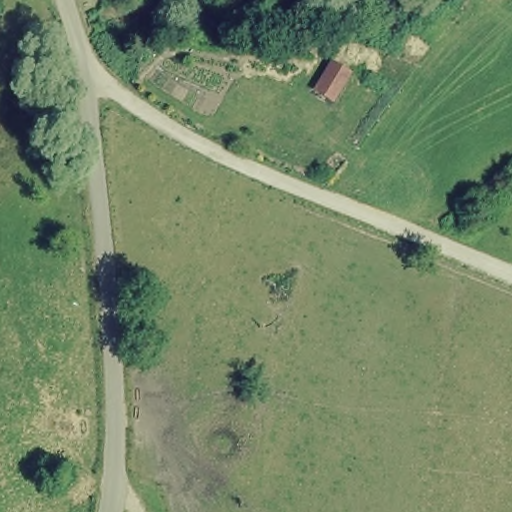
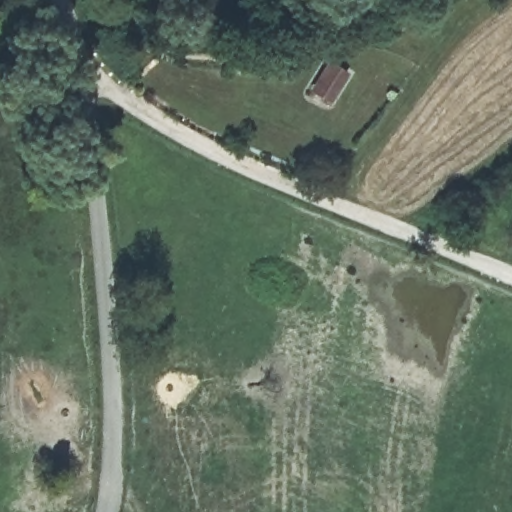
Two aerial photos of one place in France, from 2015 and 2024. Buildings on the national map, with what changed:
unchanged [(335,102),(315,91),(333,61),(353,72),(335,102)]

